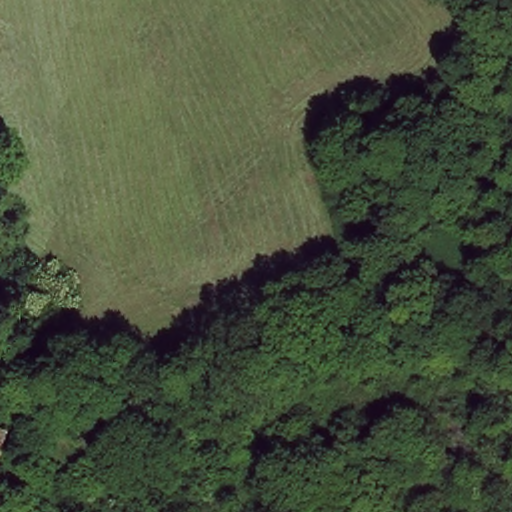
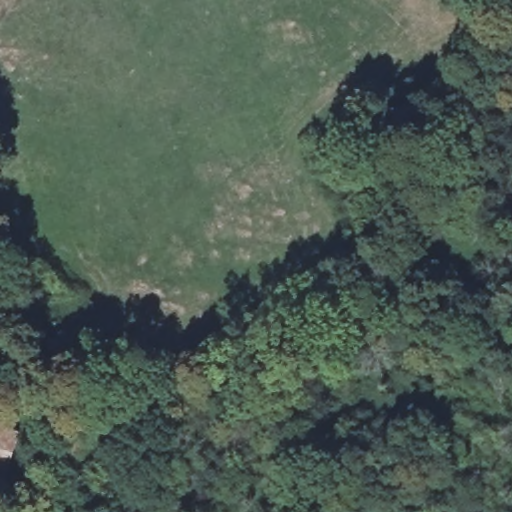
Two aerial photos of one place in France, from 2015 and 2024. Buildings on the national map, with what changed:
unchanged [(0,442),(0,430),(3,431),(0,442)]

